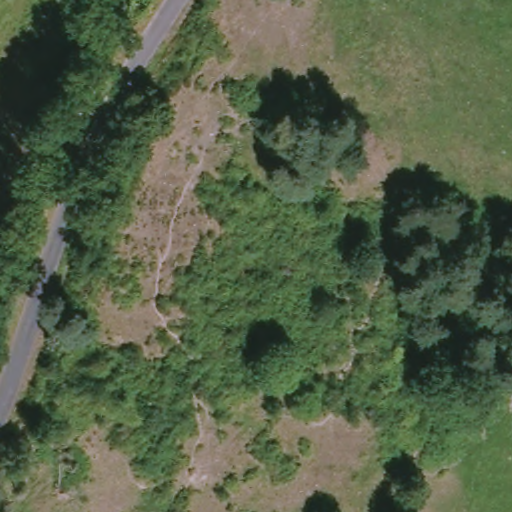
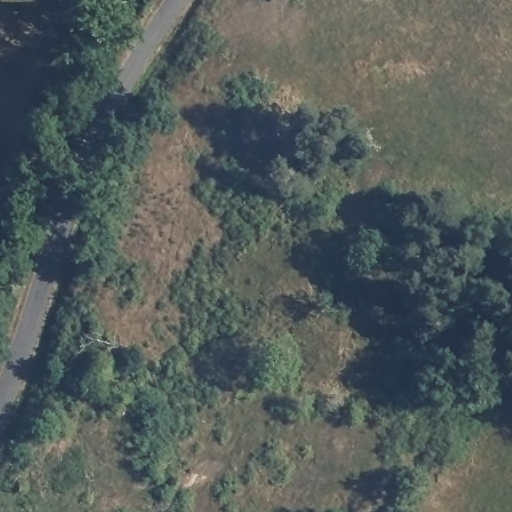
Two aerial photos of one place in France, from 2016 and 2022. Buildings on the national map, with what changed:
[]

